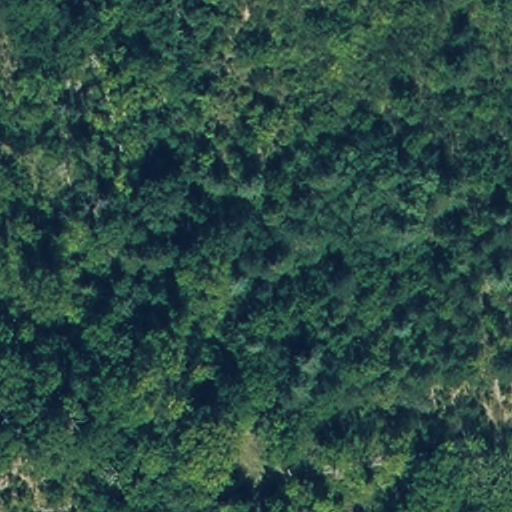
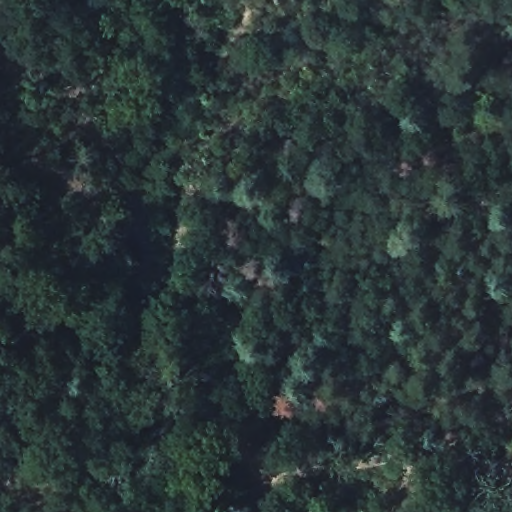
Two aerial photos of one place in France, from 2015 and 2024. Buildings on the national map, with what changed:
unchanged [(436,212),(426,222),(416,214),(443,189),(455,204),(443,219),(436,212)]

